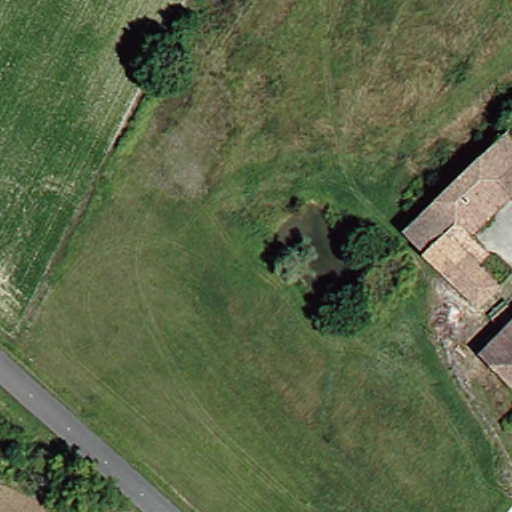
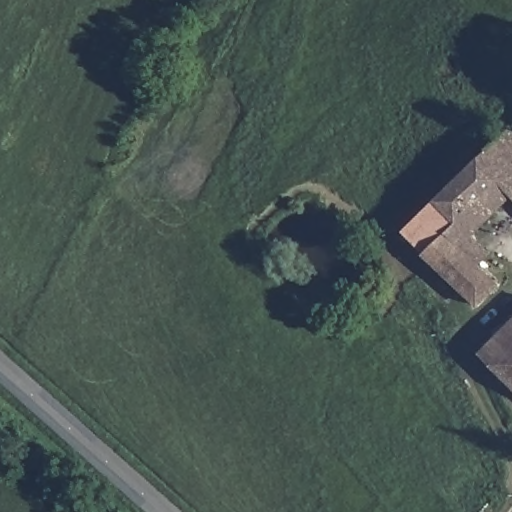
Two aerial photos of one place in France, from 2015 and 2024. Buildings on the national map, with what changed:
unchanged [(477,270),(499,291),(478,315),(401,239),(497,142),(512,158),(512,205),(508,201),(473,241),(489,257),(477,270)]
unchanged [(482,361),(512,325),(512,391),(482,361)]

